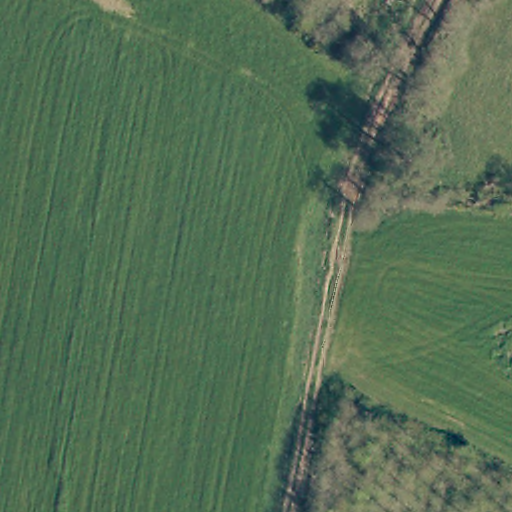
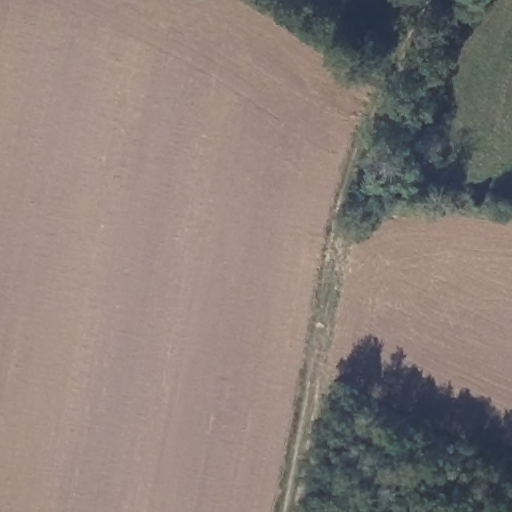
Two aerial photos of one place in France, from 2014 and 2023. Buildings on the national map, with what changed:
[]

